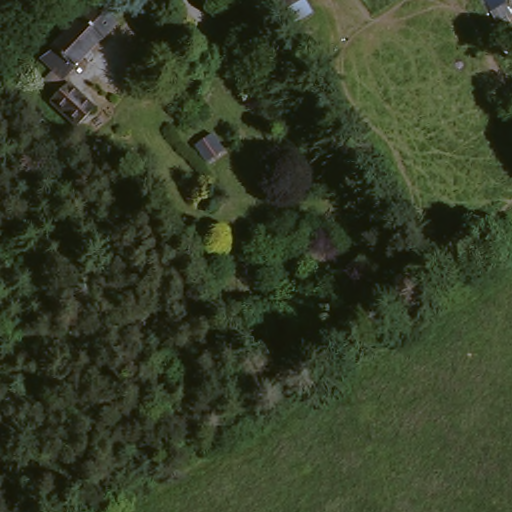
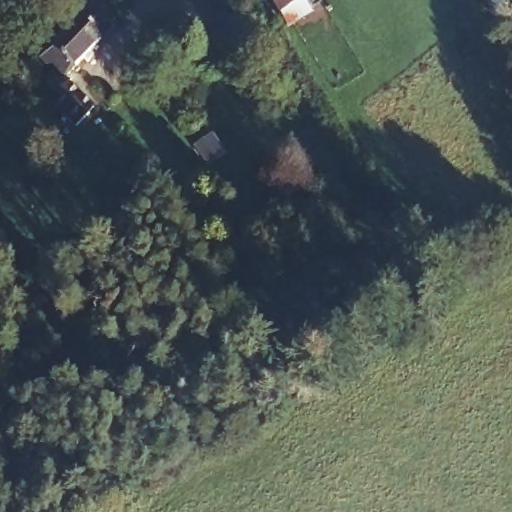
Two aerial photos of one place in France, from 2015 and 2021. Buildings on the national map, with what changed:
unchanged [(303,11),(280,24),(263,0),(295,0),(303,11)]
unchanged [(41,57),(94,4),(118,26),(64,80),(71,87),(95,111),(76,130),(49,101),(59,91),(57,90),(44,77),(33,66),(41,57)]
unchanged [(198,126),(209,138),(194,152),(184,140),(198,126)]

